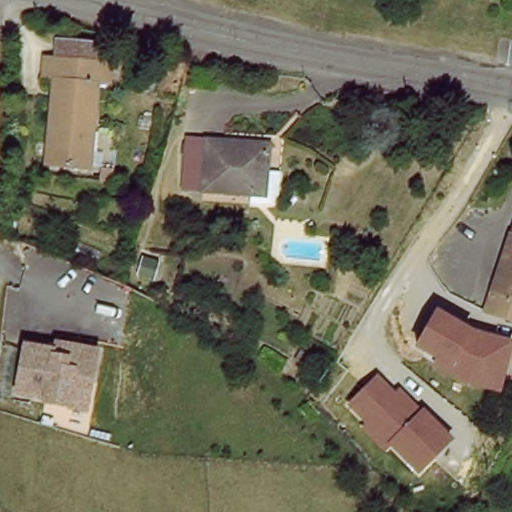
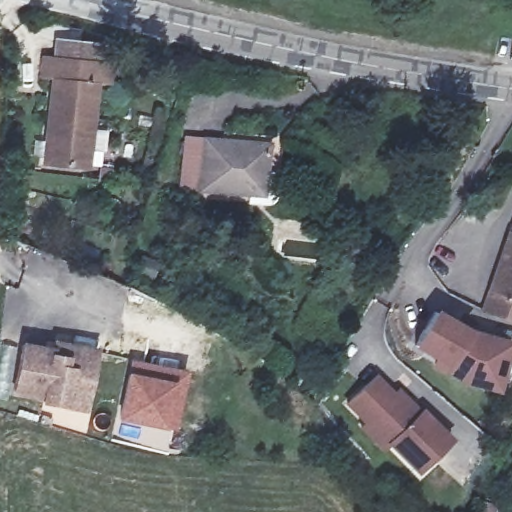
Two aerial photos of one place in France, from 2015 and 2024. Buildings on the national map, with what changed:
unchanged [(104,49),(101,65),(114,69),(112,89),(100,86),(90,171),(44,167),(53,84),(39,83),(43,59),(54,62),(54,43),(104,49)]
unchanged [(271,149),(266,200),(184,194),(188,141),(271,149)]
unchanged [(481,314),(512,238),(512,326),(481,314)]
unchanged [(452,379),(452,375),(431,365),(434,360),(413,348),(434,309),(469,329),(512,343),(512,346),(498,393),(452,379)]
unchanged [(89,414),(73,412),(43,408),(44,399),(17,394),(26,346),(56,353),(57,344),(99,356),(89,414)]
new [(188,371),(176,432),(168,429),(168,432),(118,422),(128,373),(131,360),(188,371)]
unchanged [(391,447),(386,453),(359,429),(365,424),(346,406),(378,373),(396,393),(401,388),(455,439),(421,475),(391,447)]

